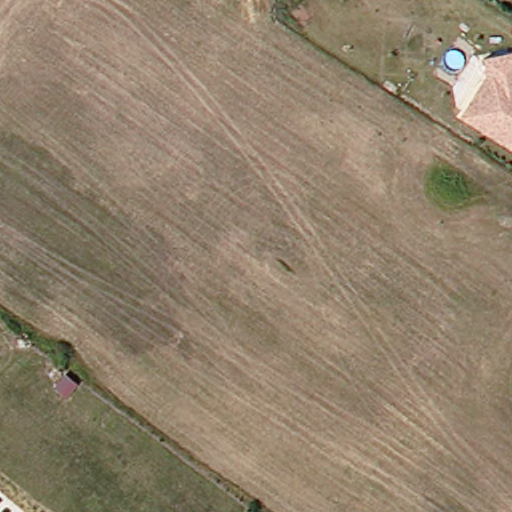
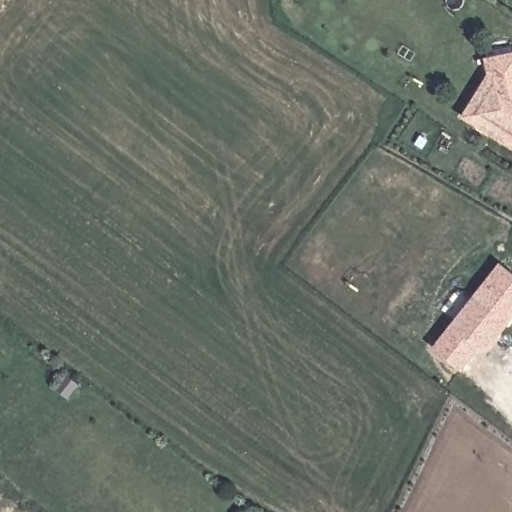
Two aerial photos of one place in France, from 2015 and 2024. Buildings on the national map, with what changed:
unchanged [(477,93),(487,77),(483,61),(512,55),(512,151),(485,134),(461,119),(477,93)]
new [(512,323),(468,379),(431,350),(498,263),(512,273),(512,323)]

